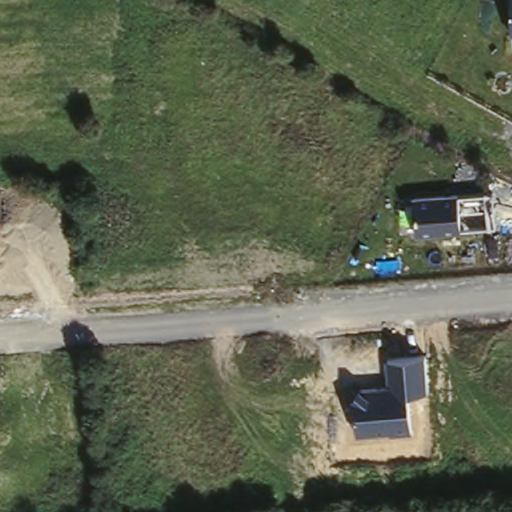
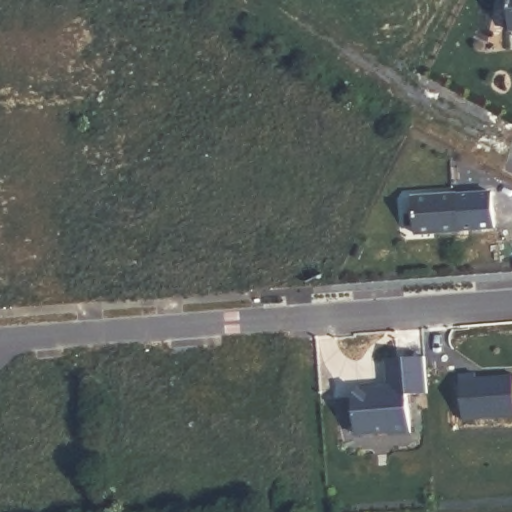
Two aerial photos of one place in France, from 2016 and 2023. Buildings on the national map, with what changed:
unchanged [(496,228),(416,234),(413,195),(493,188),(496,228)]
unchanged [(426,353),(428,391),(410,396),(411,431),(389,434),(389,431),(357,433),(353,400),(361,383),(386,382),(385,356),(426,353)]
new [(472,377),(473,383),(512,381),(512,419),(460,423),(457,378),(472,377)]

